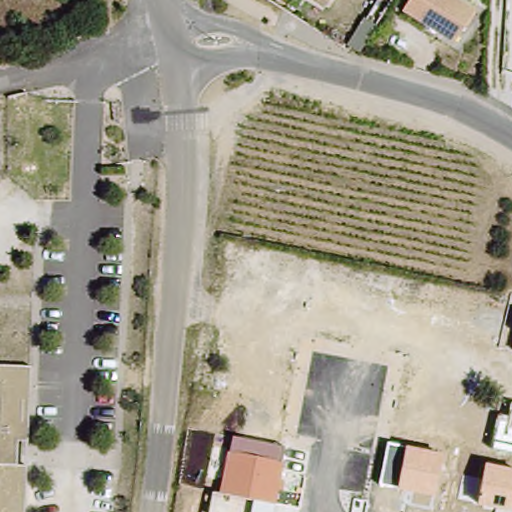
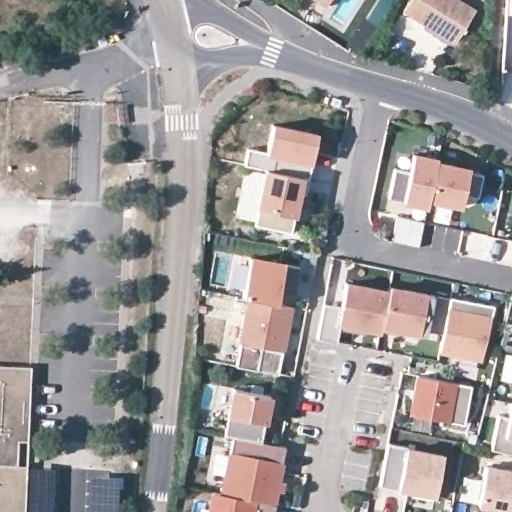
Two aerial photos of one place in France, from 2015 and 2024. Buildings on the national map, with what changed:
unchanged [(315,0),(329,0),(325,6),(315,0)]
unchanged [(452,0),(477,15),(457,48),(404,17),(414,0),(452,0)]
new [(248,147),(266,151),(272,124),(317,133),(308,177),(266,168),(244,164),(248,147)]
new [(395,167),(410,170),(414,153),(438,158),(437,161),(429,198),(428,205),(389,197),(395,167)]
new [(437,161),(470,168),(470,171),(484,174),(479,197),(465,194),(463,205),(429,198),(437,161)]
new [(266,168),(308,177),(305,193),(299,191),(291,231),(254,224),(266,168)]
new [(237,365),(249,297),(243,295),(251,255),(285,262),(299,266),(293,293),(280,289),(278,302),(294,307),(285,350),(262,345),(256,371),(237,365)]
new [(318,338),(324,304),(341,308),(346,284),(389,292),(390,286),(426,293),(449,299),(492,308),(481,360),(442,352),(446,333),(428,330),(427,336),(383,328),(381,332),(341,324),(336,343),(318,338)]
demolished [(482,315),(474,352),(414,340),(423,303),(482,315)]
demolished [(243,336),(328,353),(321,390),(233,373),(243,336)]
unchanged [(0,435),(0,359),(34,361),(33,395),(32,415),(31,436),(0,435)]
unchanged [(418,373),(471,384),(464,422),(410,412),(418,373)]
new [(225,433),(229,414),(234,389),(273,396),(266,424),(262,441),(231,435),(225,433)]
new [(492,448),(498,416),(508,417),(511,403),(512,404),(512,453),(492,448)]
unchanged [(30,461),(0,460),(0,435),(31,436),(30,461)]
unchanged [(231,435),(286,446),(284,463),(274,512),(209,512),(213,491),(221,492),(231,435)]
unchanged [(387,442),(407,446),(444,453),(436,496),(398,488),(380,485),(387,442)]
unchanged [(28,512),(0,512),(0,460),(30,461),(28,512)]
unchanged [(486,465),(512,470),(512,511),(477,503),(486,465)]

